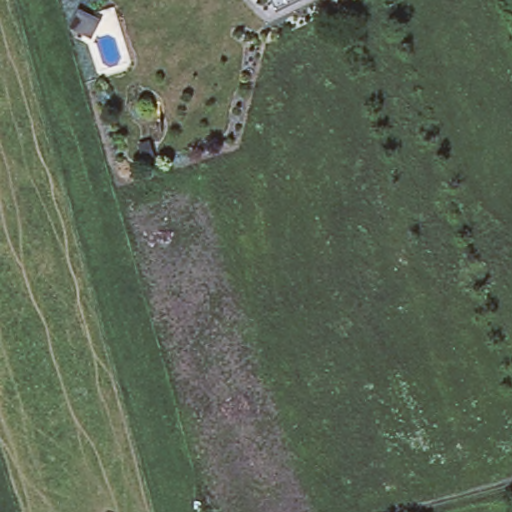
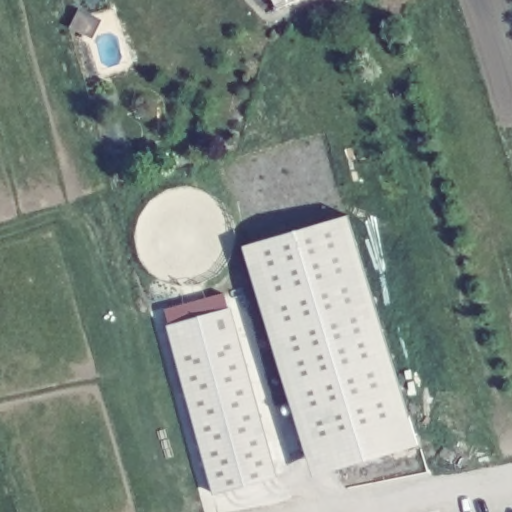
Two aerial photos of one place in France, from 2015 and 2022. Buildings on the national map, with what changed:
unchanged [(283,0),(302,0),(287,7),(283,0)]
new [(419,445),(313,478),(243,247),(348,215),(419,445)]
new [(228,308),(275,478),(215,494),(168,325),(228,308)]

